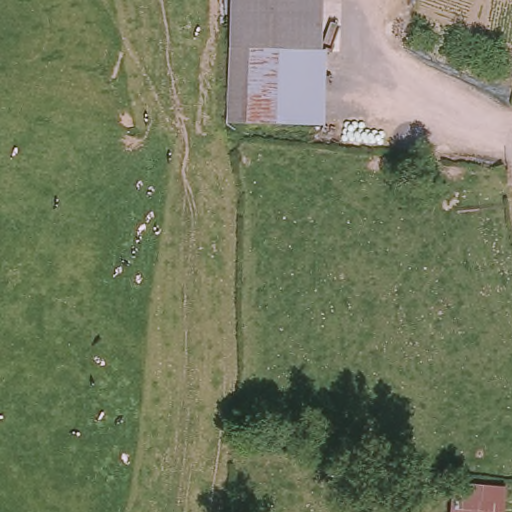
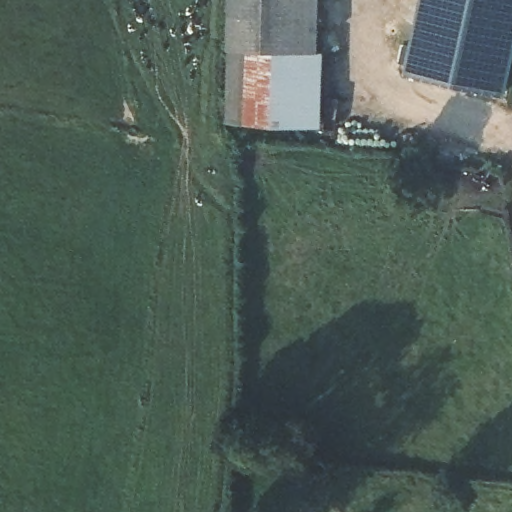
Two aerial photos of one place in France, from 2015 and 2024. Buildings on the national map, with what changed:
unchanged [(312,124),(240,125),(239,53),(238,0),(310,0),(310,50),(312,124)]
new [(407,69),(422,0),(512,0),(512,72),(508,91),(407,69)]
demolished [(508,491),(505,512),(449,512),(454,484),(508,491)]

